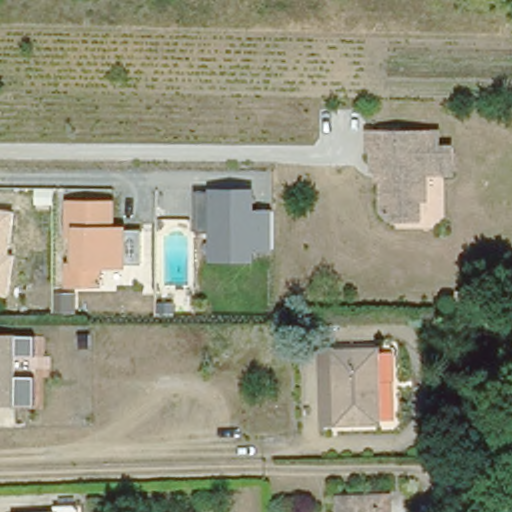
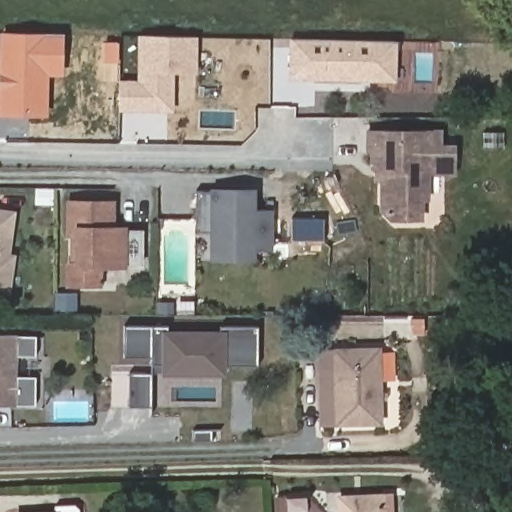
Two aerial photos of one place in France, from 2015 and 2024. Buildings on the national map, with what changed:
new [(49,116),(0,116),(0,75),(1,34),(63,34),(64,76),(50,76),(49,116)]
new [(175,74),(175,112),(120,112),(119,80),(137,81),(137,36),(198,36),(197,75),(175,74)]
new [(397,42),(396,82),(287,80),(290,37),(397,42)]
unchanged [(381,139),(376,139),(377,120),(450,121),(450,136),(465,136),(465,146),(381,145),(381,139)]
unchanged [(464,161),(437,161),(437,188),(431,188),(430,209),(399,209),(391,202),(392,172),(386,172),(386,159),(381,158),(381,145),(465,146),(464,161)]
demolished [(191,207),(171,207),(171,180),(192,181),(191,207)]
unchanged [(256,208),(273,208),(273,250),(258,251),(258,258),(211,258),(211,231),(194,231),(195,192),(257,191),(256,208)]
unchanged [(11,254),(17,255),(12,297),(0,296),(0,209),(15,211),(11,254)]
unchanged [(65,209),(107,210),(107,235),(120,236),(120,239),(65,238),(65,209)]
unchanged [(119,274),(95,273),(95,291),(64,291),(64,272),(65,242),(65,238),(120,239),(119,274)]
new [(219,326),(259,326),(259,367),(227,367),(226,377),(160,376),(161,366),(151,366),(151,357),(124,357),(124,326),(168,326),(168,329),(219,330),(219,326)]
unchanged [(14,331),(14,370),(14,402),(0,402),(0,331),(14,331)]
unchanged [(385,348),(385,373),(385,420),(330,421),(330,373),(329,348),(385,348)]
new [(151,373),(151,407),(129,407),(129,372),(151,373)]
unchanged [(345,512),(344,502),(353,502),(388,499),(389,512),(345,512)]

